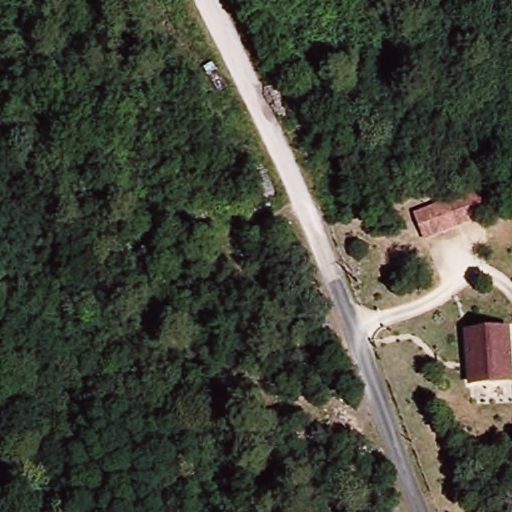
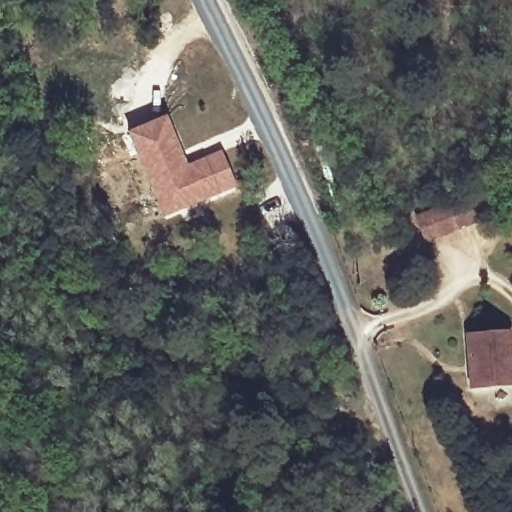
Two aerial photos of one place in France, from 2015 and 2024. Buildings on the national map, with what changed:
new [(234,186),(218,194),(163,218),(127,136),(164,120),(180,157),(185,169),(203,161),(219,154),(234,186)]
unchanged [(445,199),(460,232),(422,248),(410,216),(445,199)]
unchanged [(507,336),(512,384),(472,389),(466,341),(507,336)]

